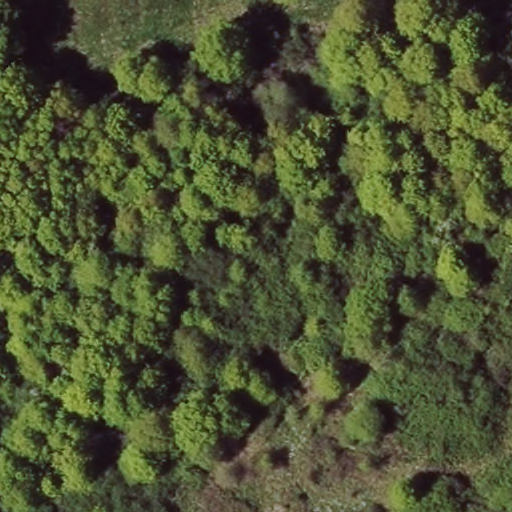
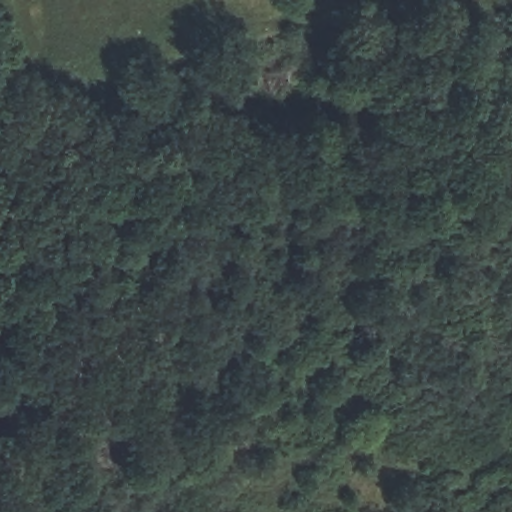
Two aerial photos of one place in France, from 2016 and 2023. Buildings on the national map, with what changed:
[]

